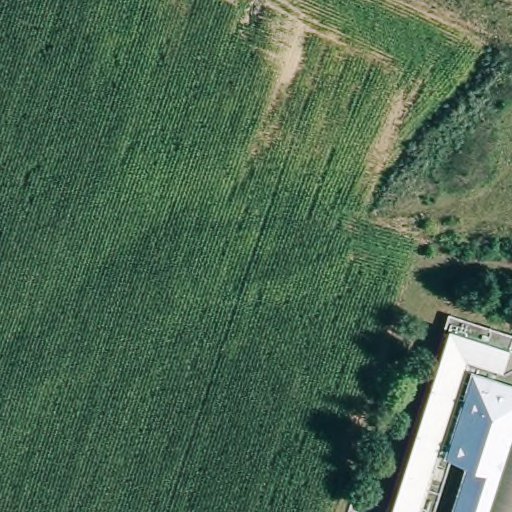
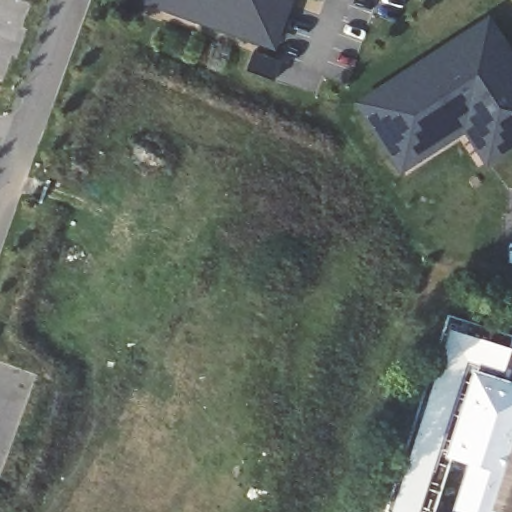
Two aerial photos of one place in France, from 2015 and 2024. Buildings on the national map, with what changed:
new [(146,0),(288,0),(271,46),(146,1),(146,0)]
new [(490,17),(512,51),(512,154),(487,171),(465,137),(401,177),(357,106),(490,17)]
new [(280,62),(274,81),(245,71),(252,52),(280,62)]
unchanged [(396,512),(450,328),(512,347),(512,349),(508,365),(512,365),(512,512),(396,512)]

